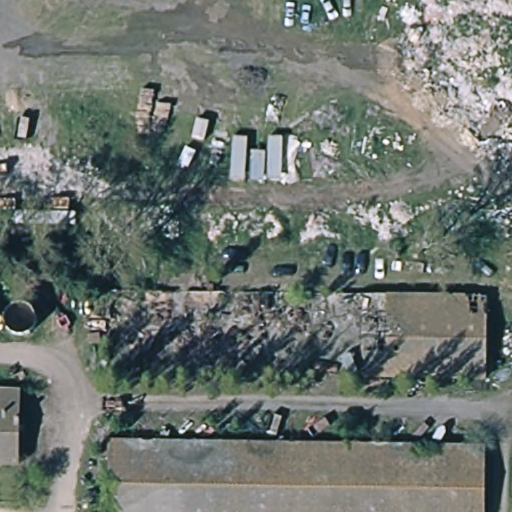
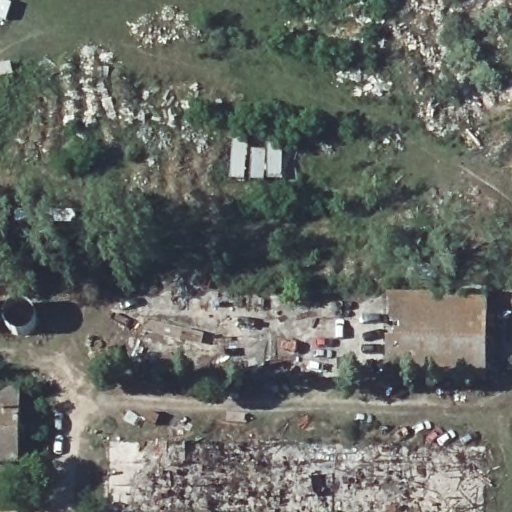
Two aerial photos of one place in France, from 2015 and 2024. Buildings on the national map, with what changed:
unchanged [(361,297),(489,302),(489,384),(358,383),(361,297)]
unchanged [(38,306),(42,318),(38,330),(25,335),(13,330),(9,318),(14,306),(26,302),(38,306)]
unchanged [(0,466),(0,400),(23,400),(24,466),(0,466)]
demolished [(111,512),(110,446),(479,447),(479,512),(111,512)]

